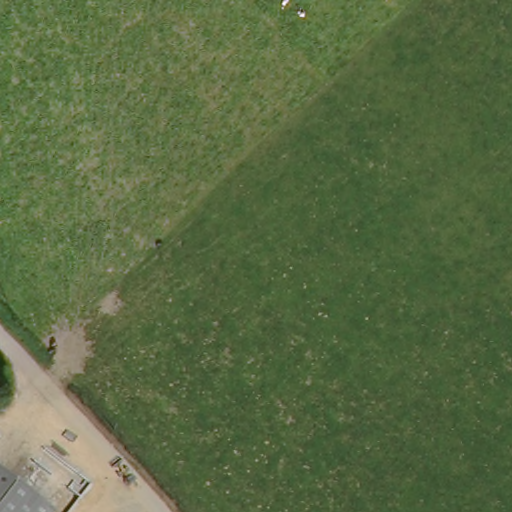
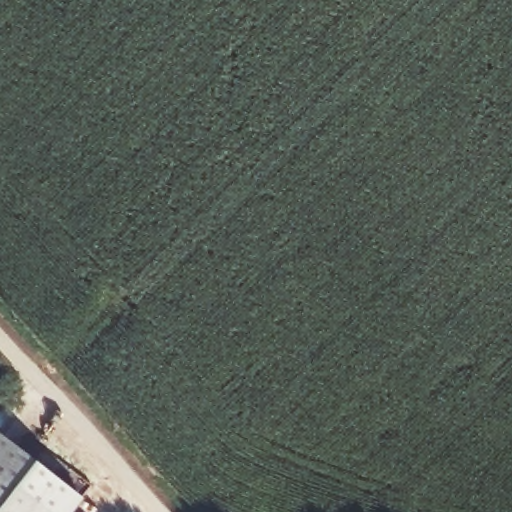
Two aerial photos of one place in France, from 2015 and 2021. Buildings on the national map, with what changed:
new [(71,512),(48,512),(0,475),(0,432),(84,497),(71,512)]
unchanged [(0,475),(48,512),(0,512),(0,475)]

